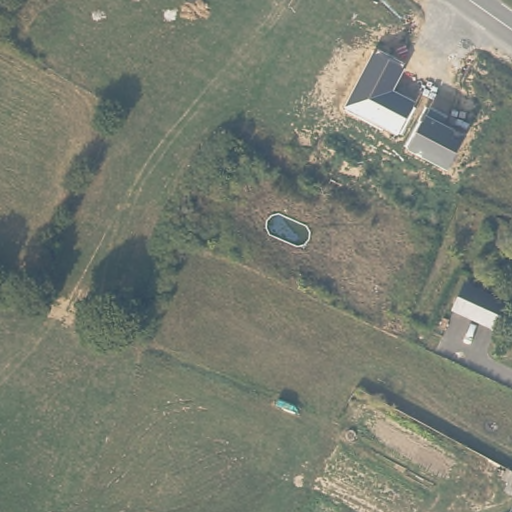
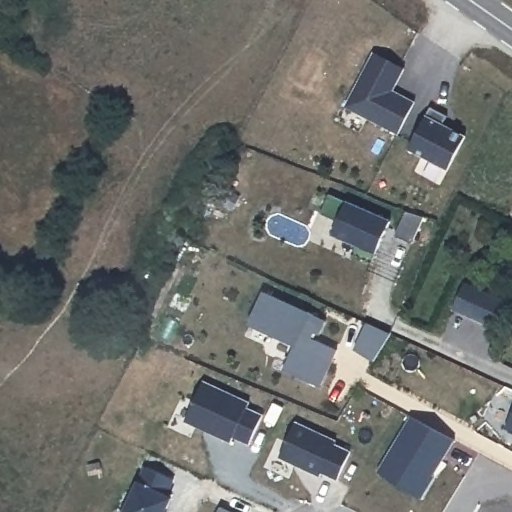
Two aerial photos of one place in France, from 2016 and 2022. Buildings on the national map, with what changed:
unchanged [(414,101),(397,133),(347,106),(374,51),(404,68),(393,91),(414,101)]
unchanged [(431,107),(447,116),(442,124),(465,136),(448,168),(409,149),(426,115),(431,107)]
new [(329,194),(389,221),(371,262),(352,253),(356,244),(331,233),(337,220),(320,213),(329,194)]
new [(405,211),(406,210),(423,216),(411,243),(394,235),(405,211)]
unchanged [(465,284),(509,304),(497,328),(454,309),(465,284)]
new [(262,291),(325,320),(319,334),(313,332),(311,337),(337,349),(319,386),(282,370),(294,344),(248,322),(262,291)]
new [(366,322),(390,333),(373,361),(354,349),(366,322)]
new [(203,381),(249,402),(246,407),(262,415),(249,444),(233,436),(230,442),(185,420),(203,381)]
new [(504,428),(512,412),(512,431),(504,428)]
new [(295,422),(335,440),(334,444),(350,451),(337,479),(321,472),(319,476),(279,457),(295,422)]
new [(143,465),(174,479),(167,494),(173,497),(166,512),(122,512),(136,480),(143,465)]
demolished [(460,465),(473,472),(482,477),(479,482),(493,489),(484,507),(448,488),(460,465)]
demolished [(512,476),(512,498),(506,495),(511,487),(503,482),(508,473),(512,476)]
unchanged [(220,512),(222,508),(231,512),(220,512)]

